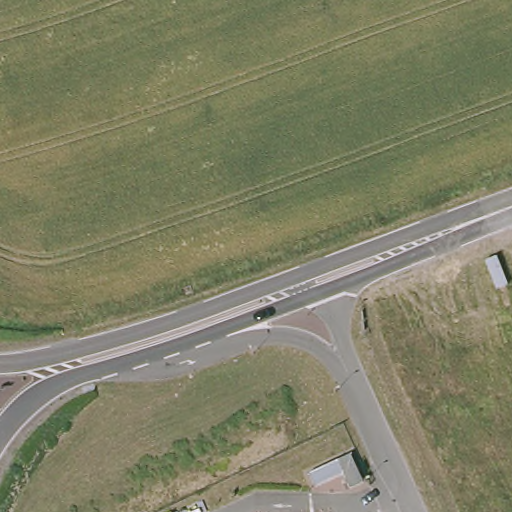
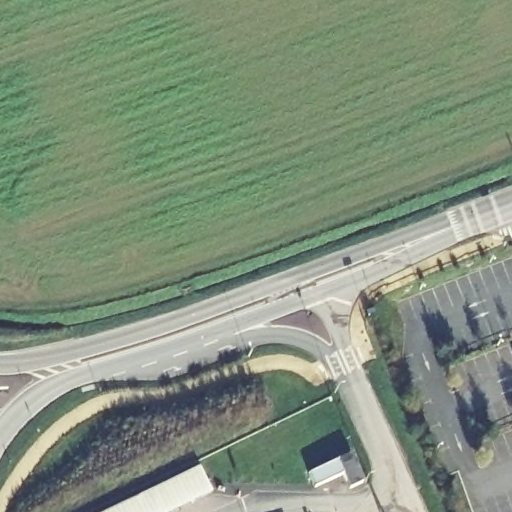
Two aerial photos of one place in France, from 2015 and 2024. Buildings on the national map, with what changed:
unchanged [(335,456),(346,481),(332,487),(326,476),(303,486),(298,471),(335,456)]
new [(199,465),(213,490),(165,512),(102,512),(199,465)]

